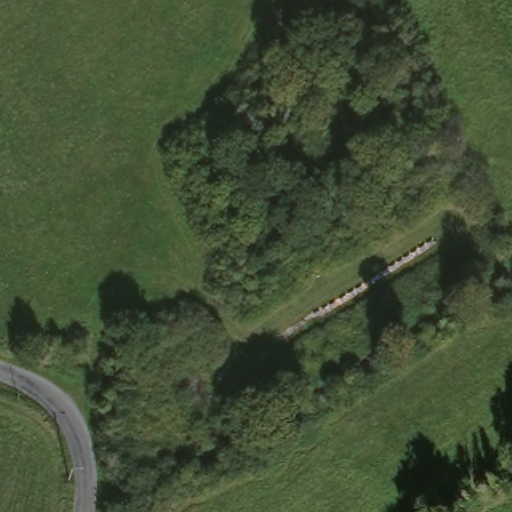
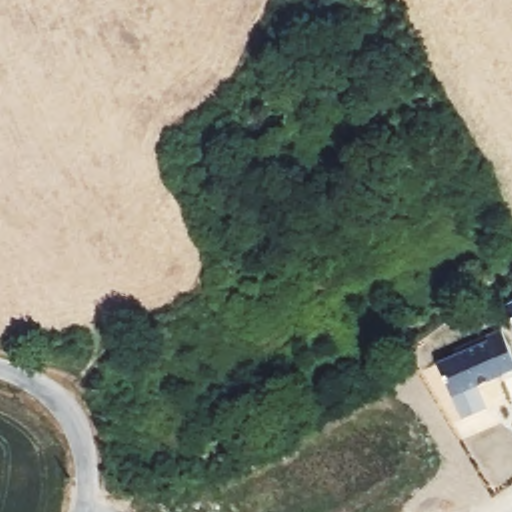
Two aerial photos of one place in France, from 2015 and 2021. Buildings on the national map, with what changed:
new [(508,306),(512,305),(512,317),(508,306)]
new [(455,352),(486,338),(501,332),(503,337),(512,359),(512,371),(502,375),(476,386),(486,410),(462,420),(438,365),(457,356),(455,352)]

